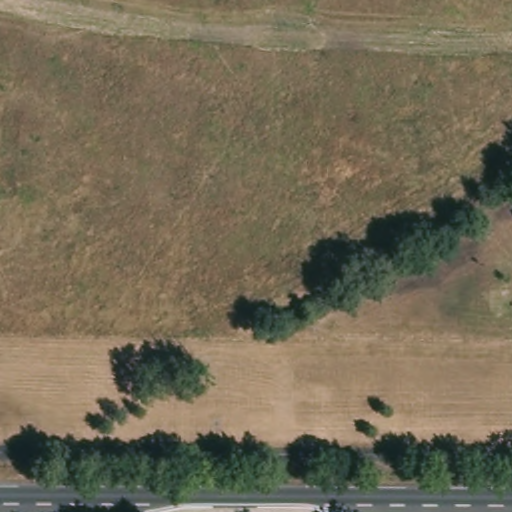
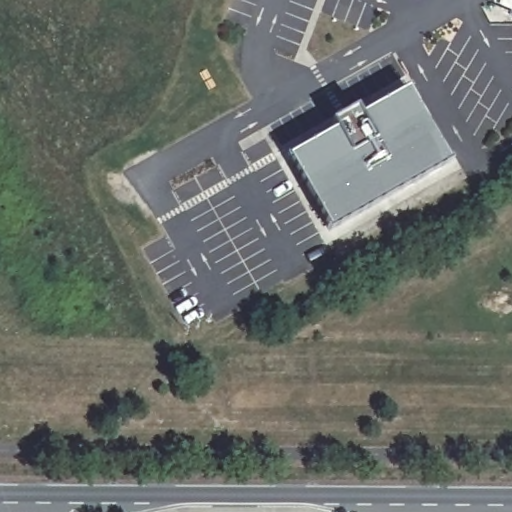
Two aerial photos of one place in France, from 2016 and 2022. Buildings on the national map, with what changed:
new [(342,131),(337,123),(363,109),(367,116),(415,89),(457,163),(336,231),(295,158),(342,131)]

